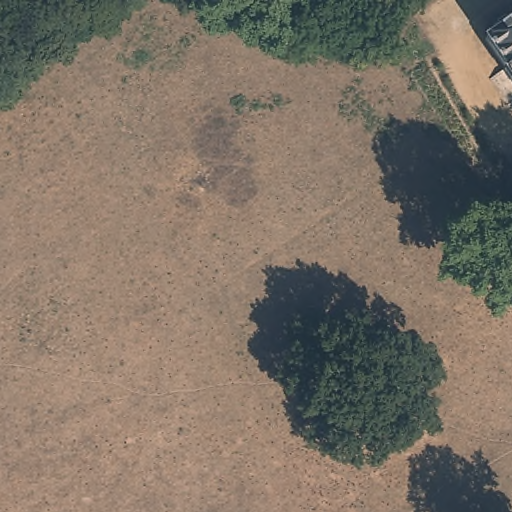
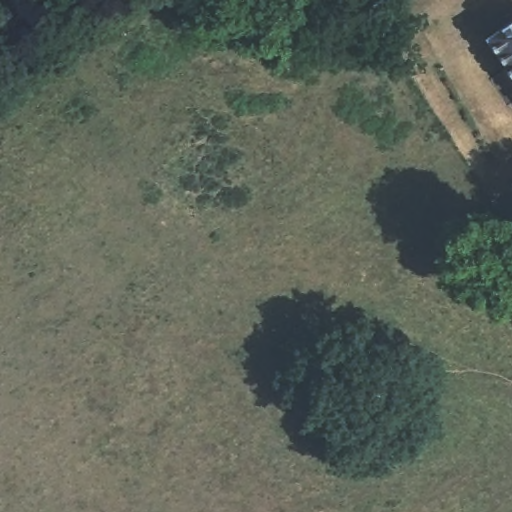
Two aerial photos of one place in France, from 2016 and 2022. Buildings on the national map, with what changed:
unchanged [(512,19),(512,73),(485,37),(512,19)]

